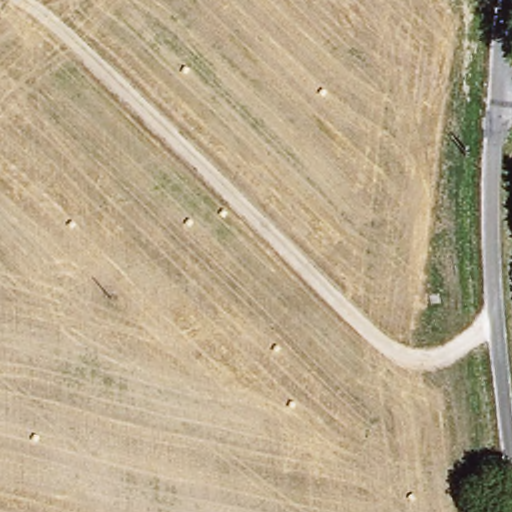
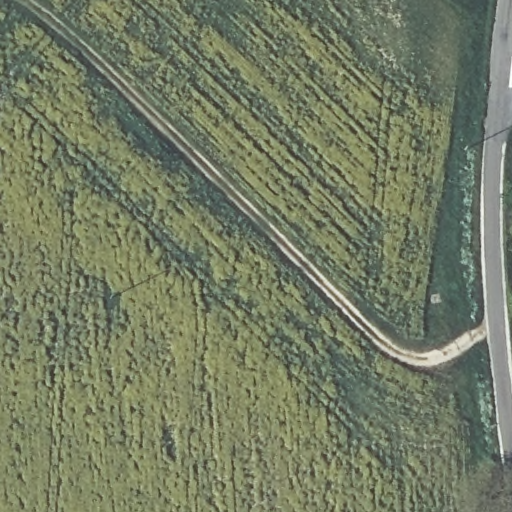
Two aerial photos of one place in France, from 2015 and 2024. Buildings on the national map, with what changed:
[]

